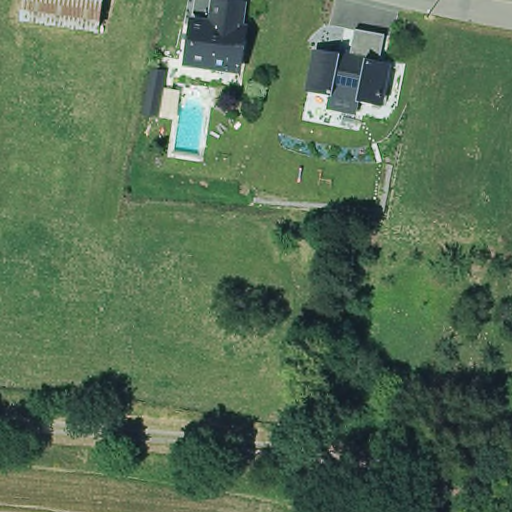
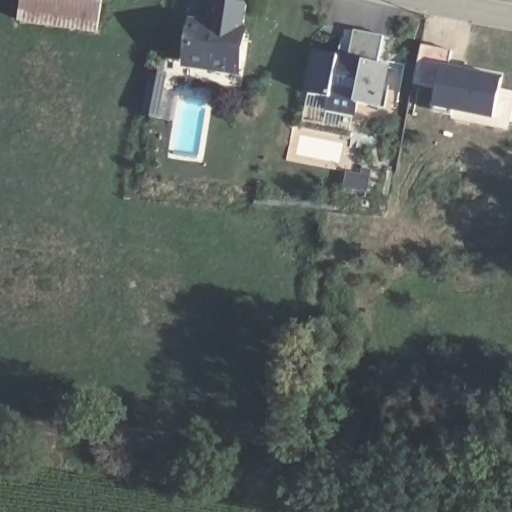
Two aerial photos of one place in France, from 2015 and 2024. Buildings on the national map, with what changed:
unchanged [(29,3),(29,0),(102,0),(100,12),(29,3)]
unchanged [(236,62),(226,61),(225,68),(208,66),(209,60),(182,56),(187,23),(208,26),(211,0),(227,0),(239,1),(235,30),(240,31),(236,62)]
unchanged [(372,106),(347,103),(345,113),(322,109),(324,100),(299,94),(307,55),(342,62),(348,35),(375,40),(370,69),(377,70),(372,106)]
new [(410,85),(418,43),(449,50),(446,62),(441,61),(436,87),(410,85)]
new [(492,119),(432,105),(441,61),(501,75),(492,119)]
unchanged [(162,111),(149,109),(156,71),(168,75),(162,111)]

